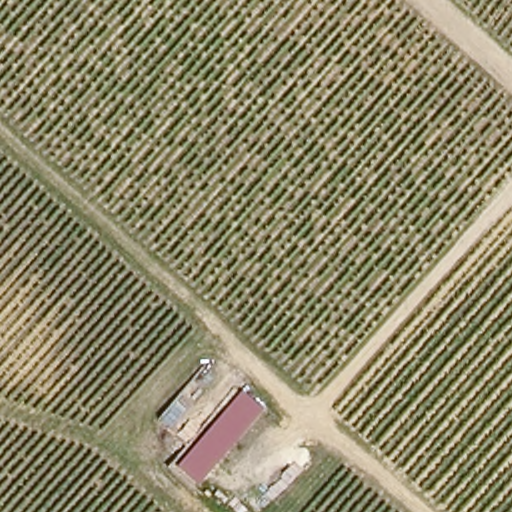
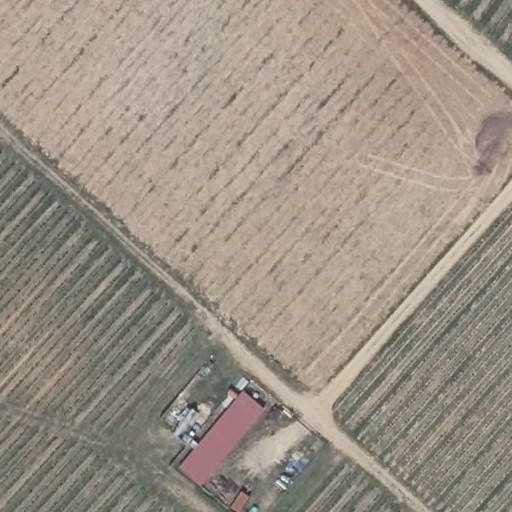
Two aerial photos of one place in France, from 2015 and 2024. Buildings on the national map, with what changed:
unchanged [(264,408),(194,492),(164,461),(228,380),(264,408)]

